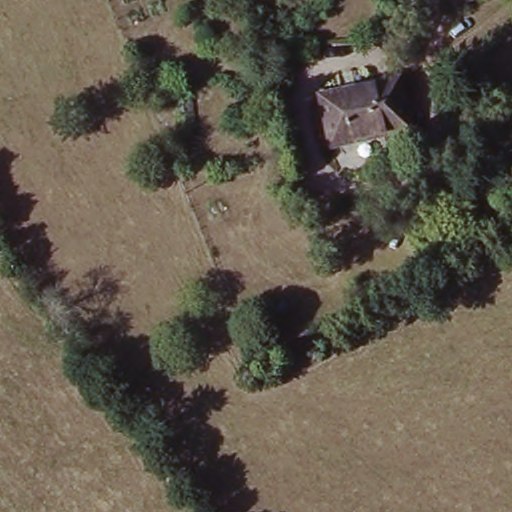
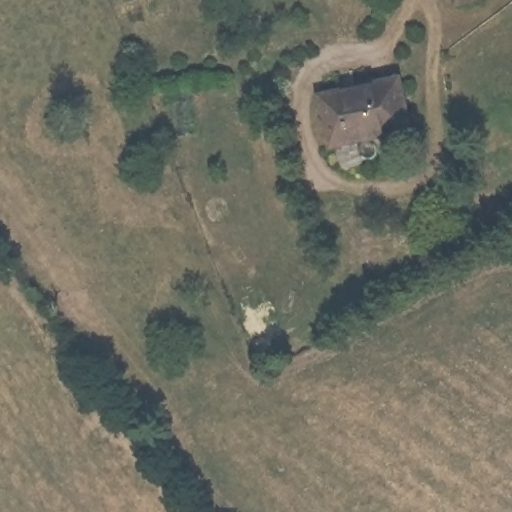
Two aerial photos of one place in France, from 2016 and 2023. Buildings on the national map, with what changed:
unchanged [(400,83),(413,129),(338,149),(325,104),(400,83)]

